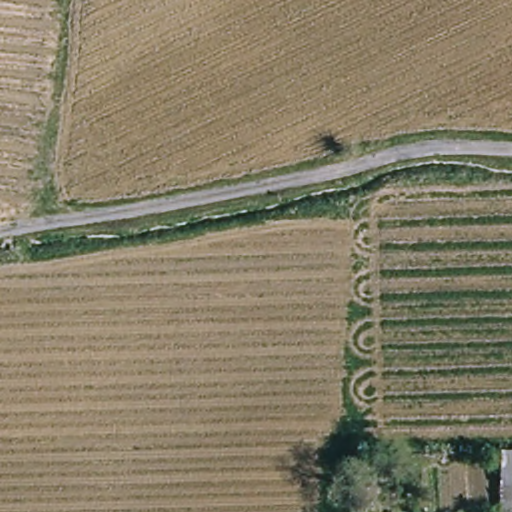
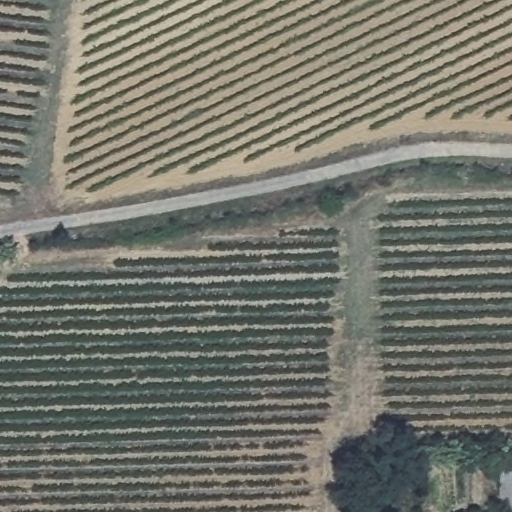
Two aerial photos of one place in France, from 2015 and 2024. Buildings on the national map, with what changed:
unchanged [(496,452),(512,452),(512,484),(495,484),(496,452)]
unchanged [(512,512),(495,512),(495,484),(512,484),(512,512)]

